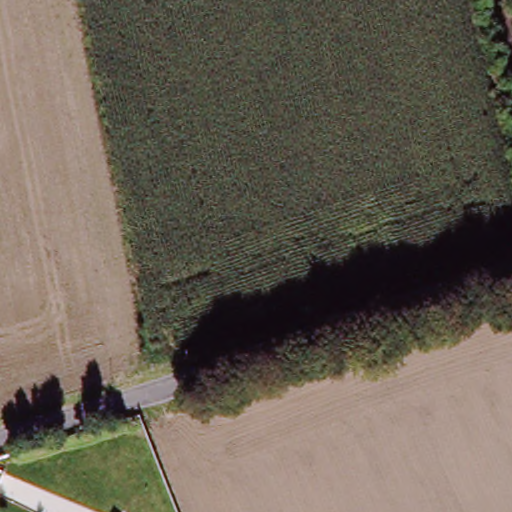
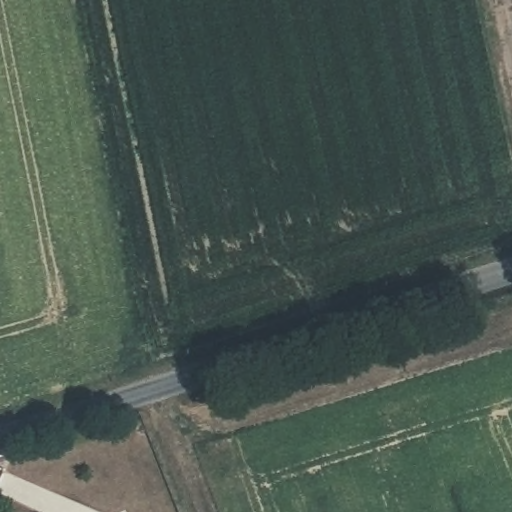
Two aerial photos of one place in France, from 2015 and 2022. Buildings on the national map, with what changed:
[]

